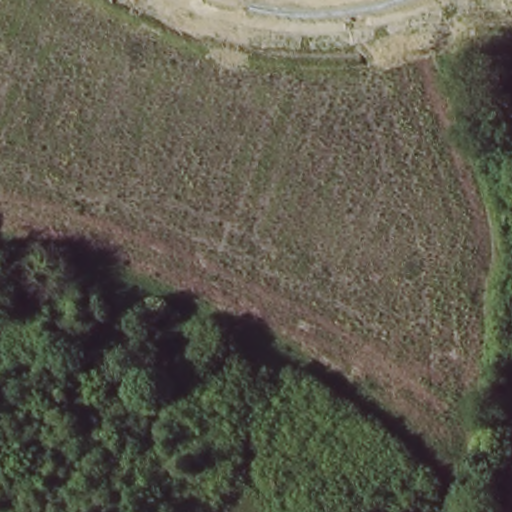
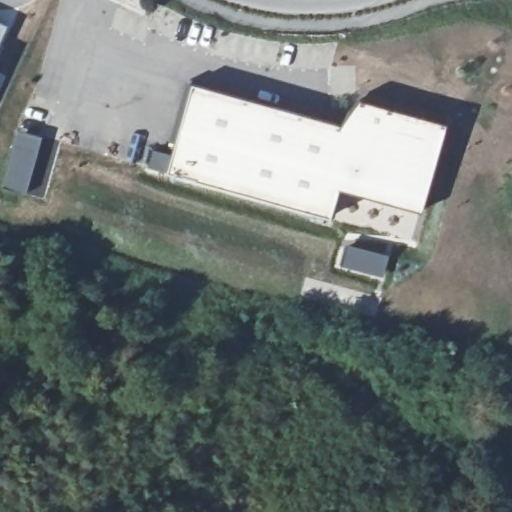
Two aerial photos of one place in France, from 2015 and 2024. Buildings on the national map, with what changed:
new [(0,40),(0,23),(6,25),(0,40)]
new [(347,116),(366,93),(450,115),(428,211),(340,188),(335,212),(174,169),(198,77),(347,116)]

